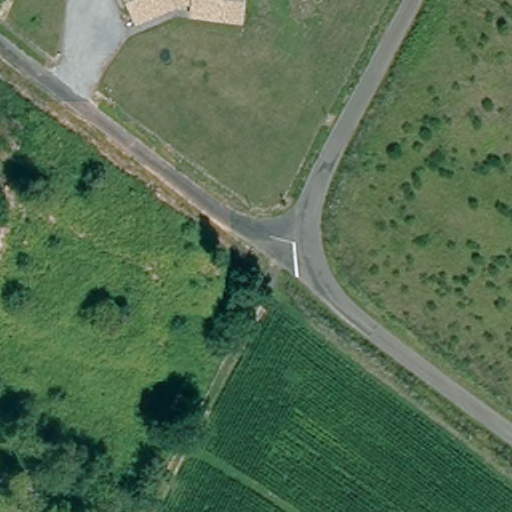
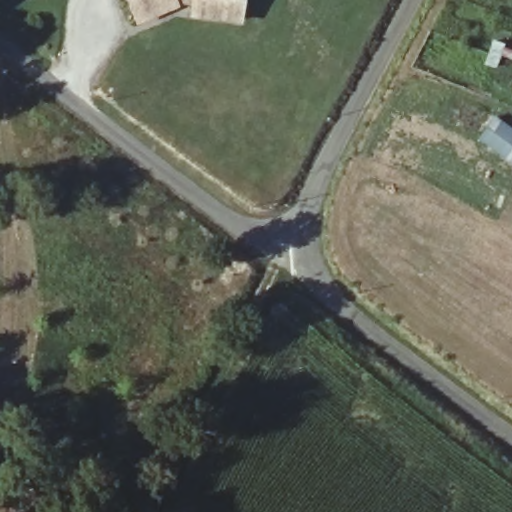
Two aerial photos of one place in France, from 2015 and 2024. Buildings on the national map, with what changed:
unchanged [(130,0),(172,0),(174,6),(138,20),(134,10),(130,0)]
unchanged [(241,3),(238,23),(192,15),(194,4),(172,0),(236,0),(235,2),(241,3)]

